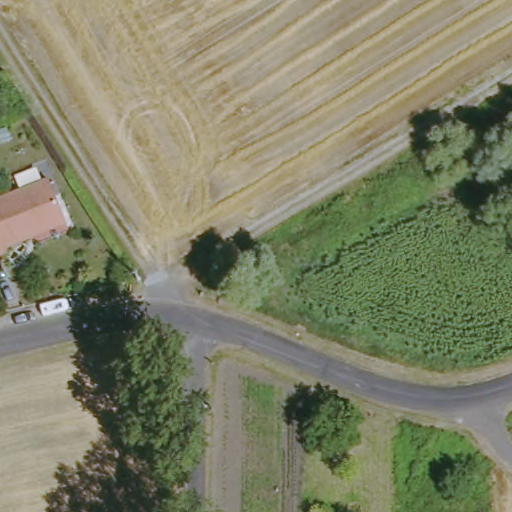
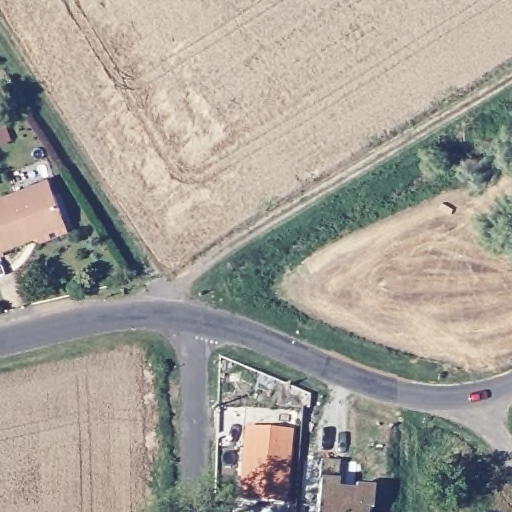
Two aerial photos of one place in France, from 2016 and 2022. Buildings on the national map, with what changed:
unchanged [(7,251),(8,255),(0,258),(0,204),(53,185),(65,221),(68,230),(36,240),(7,251)]
new [(238,501),(243,429),(290,433),(285,506),(238,501)]
new [(338,464),(337,485),(337,492),(353,493),(354,490),(371,491),(369,512),(318,512),(320,483),(320,462),(338,464)]

